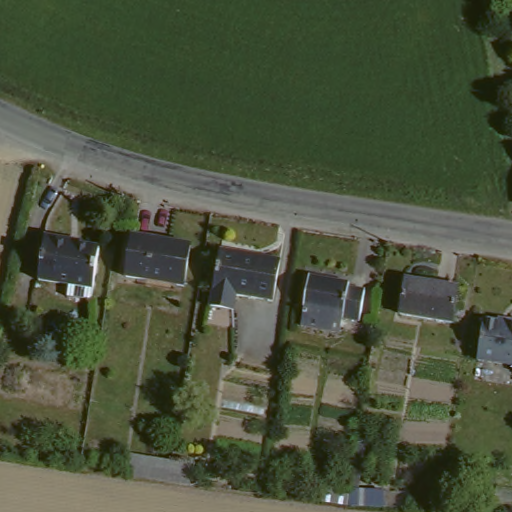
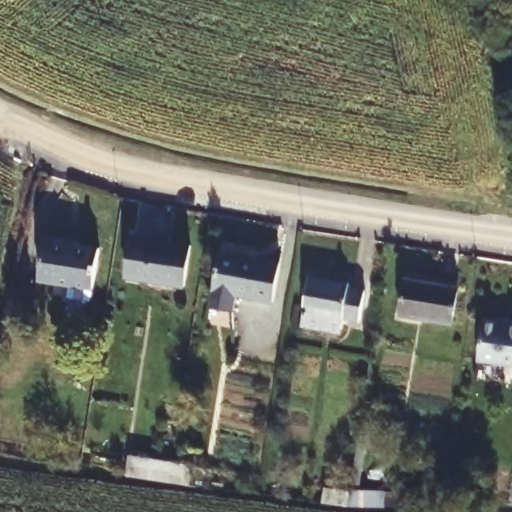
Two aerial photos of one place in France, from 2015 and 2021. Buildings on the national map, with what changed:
unchanged [(70,288),(72,275),(41,269),(50,229),(71,232),(70,238),(105,242),(95,291),(70,288)]
unchanged [(130,272),(138,233),(196,242),(189,281),(130,272)]
unchanged [(222,251),(280,260),(273,297),(237,292),(235,304),(213,301),(222,251)]
unchanged [(411,275),(461,283),(456,317),(406,310),(411,275)]
unchanged [(311,278),(355,284),(355,289),(367,291),(364,317),(343,314),(340,328),(305,322),(311,278)]
unchanged [(482,314),(507,318),(507,315),(512,316),(512,360),(477,355),(482,314)]
unchanged [(167,480),(156,479),(131,474),(133,454),(159,458),(171,459),(169,481),(167,480)]
unchanged [(392,509),(355,509),(351,508),(332,507),(335,491),(357,492),(392,494),(392,509)]

